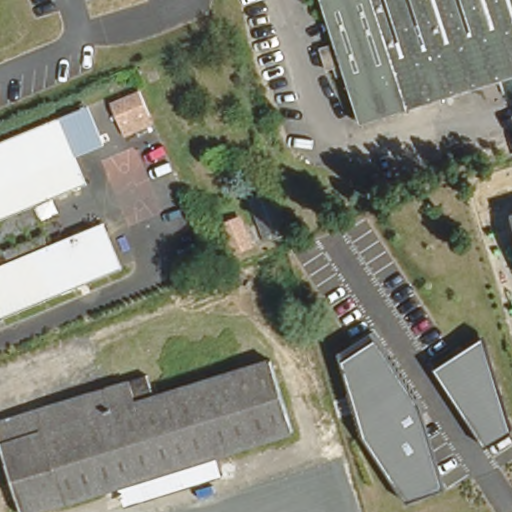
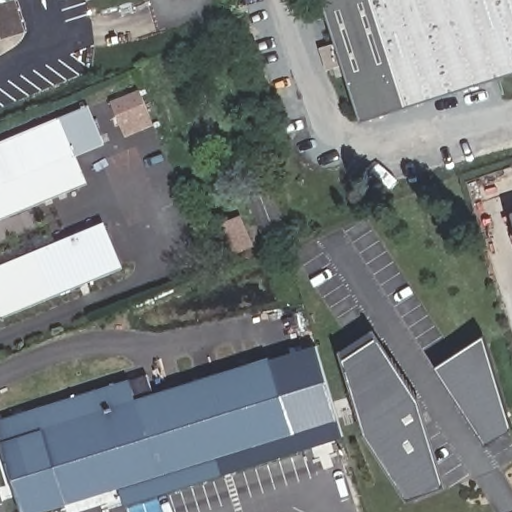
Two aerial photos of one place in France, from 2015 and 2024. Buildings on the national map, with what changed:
unchanged [(344,75),(336,78),(333,68),(325,70),(318,48),(333,44),(326,20),(308,26),(301,0),(512,0),(512,75),(358,123),(344,75)]
unchanged [(121,130),(111,104),(140,92),(150,118),(153,126),(125,138),(121,130)]
unchanged [(64,105),(79,145),(43,159),(54,187),(0,208),(0,130),(64,105)]
unchanged [(1,254),(106,212),(123,255),(3,302),(0,295),(0,251),(1,254)]
unchanged [(421,401),(447,490),(411,503),(365,435),(341,352),(374,332),(421,401)]
unchanged [(512,431),(488,445),(438,366),(485,336),(512,423),(512,431)]
new [(215,462),(291,438),(269,363),(268,360),(315,345),(342,437),(220,476),(215,462)]
unchanged [(57,512),(21,512),(0,442),(0,426),(147,380),(153,400),(269,363),(291,438),(215,462),(119,492),(57,512)]
unchanged [(215,462),(221,481),(124,511),(119,492),(215,462)]

